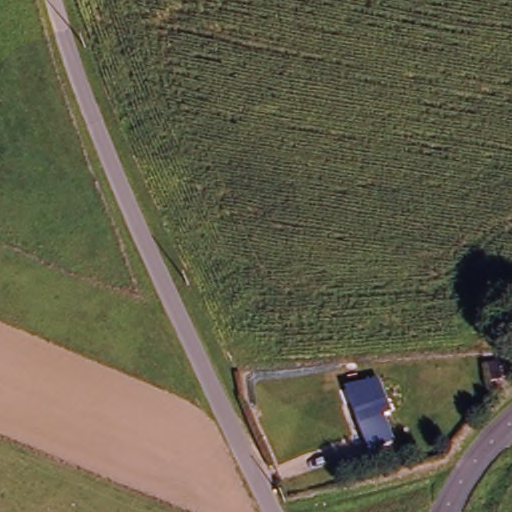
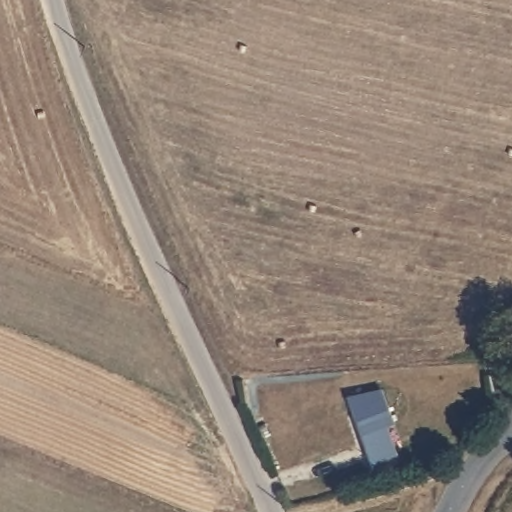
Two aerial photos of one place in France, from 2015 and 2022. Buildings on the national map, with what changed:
unchanged [(373,460),(350,395),(384,387),(397,422),(390,425),(401,451),(373,460)]

